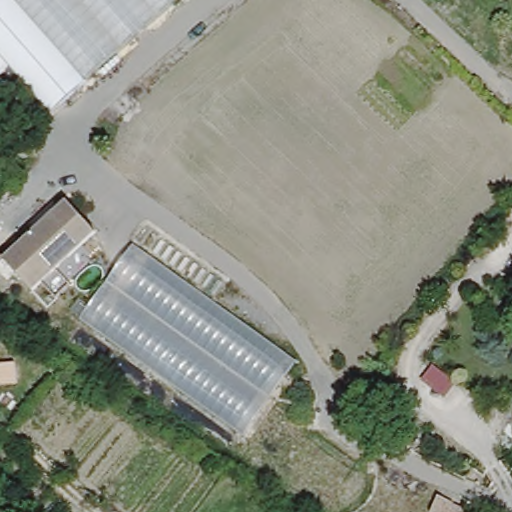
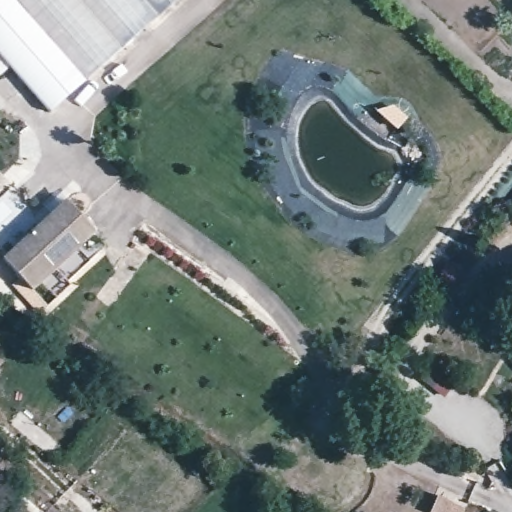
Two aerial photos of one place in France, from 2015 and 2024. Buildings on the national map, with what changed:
unchanged [(52,108),(0,48),(0,0),(16,0),(87,81),(52,108)]
unchanged [(16,0),(177,0),(87,81),(16,0)]
unchanged [(106,229),(42,288),(13,256),(3,266),(0,262),(0,247),(4,244),(14,256),(77,198),(106,229)]
demolished [(297,360),(241,439),(76,320),(134,244),(297,360)]
unchanged [(471,506),(469,512),(435,512),(433,512),(442,493),(471,506)]

